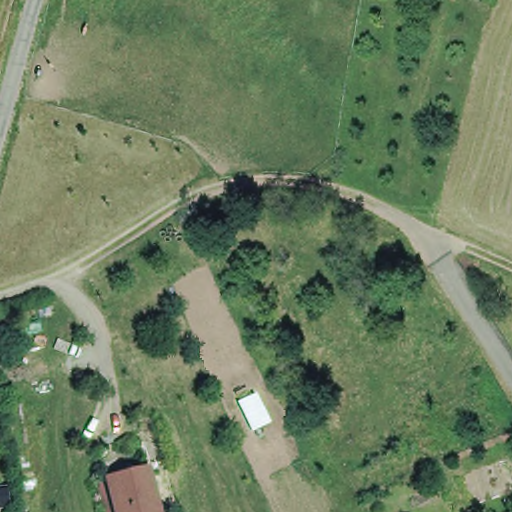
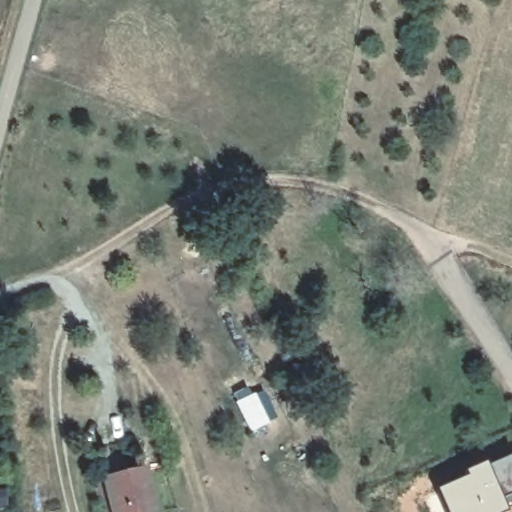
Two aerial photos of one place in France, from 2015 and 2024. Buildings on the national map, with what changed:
new [(512,500),(502,505),(485,465),(512,454),(512,500)]
new [(485,465),(502,505),(506,511),(505,512),(431,512),(425,496),(485,465)]
unchanged [(99,485),(112,480),(130,475),(149,470),(162,510),(157,512),(102,512),(94,486),(99,485)]

